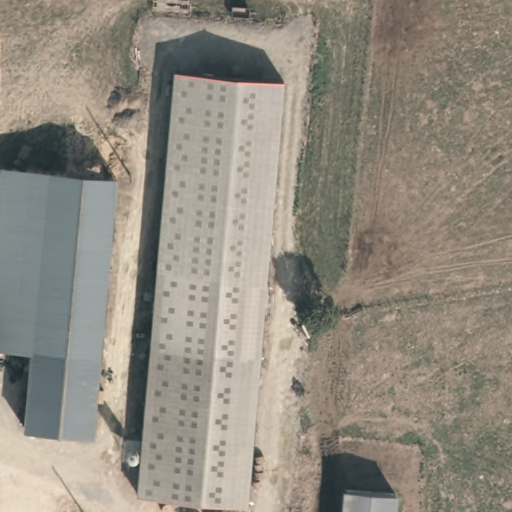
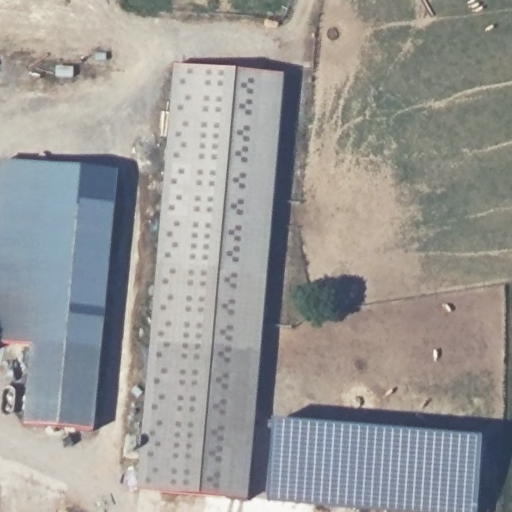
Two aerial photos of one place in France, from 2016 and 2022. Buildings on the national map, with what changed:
unchanged [(159,263),(173,65),(282,75),(267,270),(256,272),(169,264),(159,263)]
unchanged [(0,346),(0,168),(0,162),(120,170),(100,350),(34,343),(33,351),(0,346)]
unchanged [(247,499),(138,490),(159,263),(169,264),(256,272),(267,270),(247,499)]
unchanged [(34,343),(100,350),(94,431),(26,425),(33,351),(34,343)]
new [(484,440),(478,512),(367,512),(268,504),(275,422),(484,440)]

